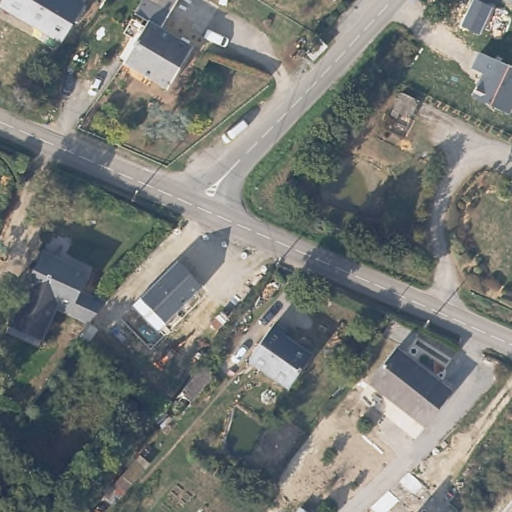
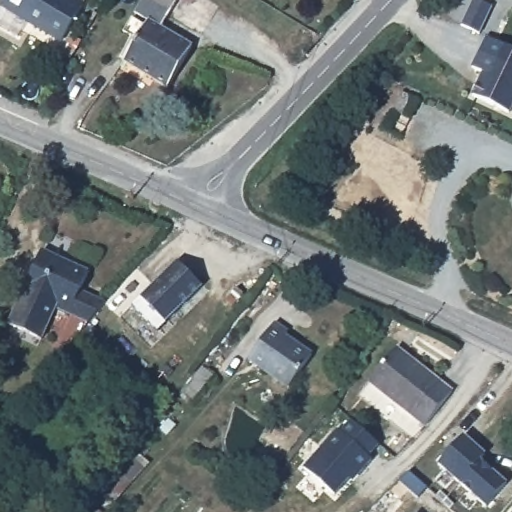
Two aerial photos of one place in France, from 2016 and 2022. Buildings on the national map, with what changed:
unchanged [(60,43),(0,7),(0,4),(3,0),(82,0),(85,3),(60,43)]
unchanged [(194,51),(169,95),(124,67),(149,28),(137,21),(149,0),(187,0),(166,36),(194,51)]
new [(483,0),(491,4),(478,31),(460,23),(471,0),(483,0)]
unchanged [(475,98),(487,74),(472,66),(479,51),(512,68),(512,109),(510,114),(475,98)]
unchanged [(54,308),(57,303),(40,295),(25,288),(43,253),(58,260),(90,275),(75,310),(72,315),(54,308)]
unchanged [(177,263),(202,287),(165,323),(157,332),(133,307),(141,297),(177,263)]
unchanged [(56,313),(42,337),(8,318),(21,291),(56,313)]
demolished [(174,331),(156,354),(146,346),(162,323),(174,331)]
unchanged [(294,333),(291,338),(319,355),(297,387),(256,361),(282,324),(294,333)]
unchanged [(454,386),(426,427),(370,388),(398,347),(454,386)]
new [(341,432),(353,419),(380,445),(370,456),(373,460),(354,480),(350,477),(335,494),(305,468),(338,430),(341,432)]
new [(464,436),(486,455),(481,461),(507,484),(487,507),(439,465),(464,436)]

